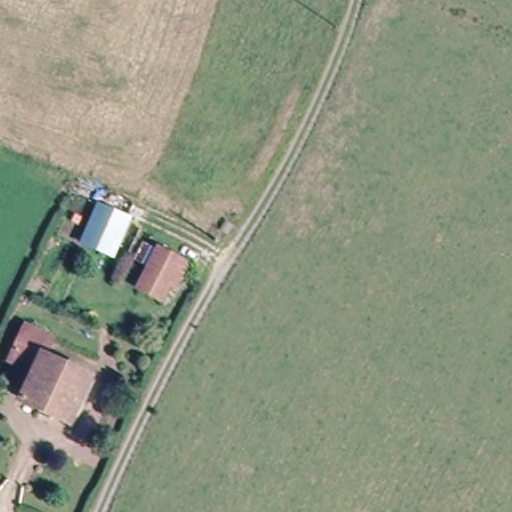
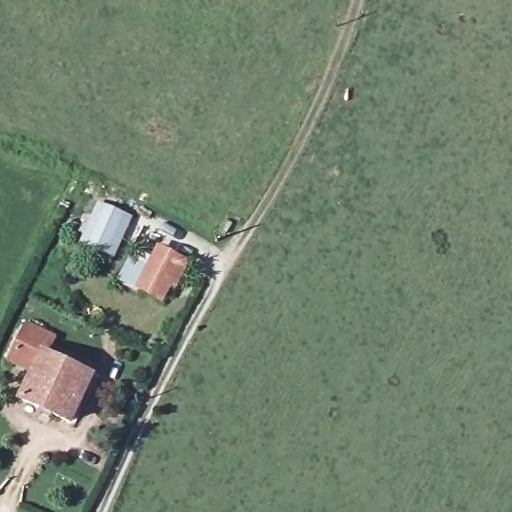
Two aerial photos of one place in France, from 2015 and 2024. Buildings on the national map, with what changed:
unchanged [(106,214),(130,226),(117,253),(93,242),(106,214)]
unchanged [(161,253),(187,266),(174,291),(169,289),(162,302),(140,289),(161,253)]
unchanged [(61,341),(54,361),(47,359),(33,385),(4,371),(24,326),(61,341)]
unchanged [(33,385),(47,359),(54,361),(93,381),(70,427),(23,406),(33,385)]

